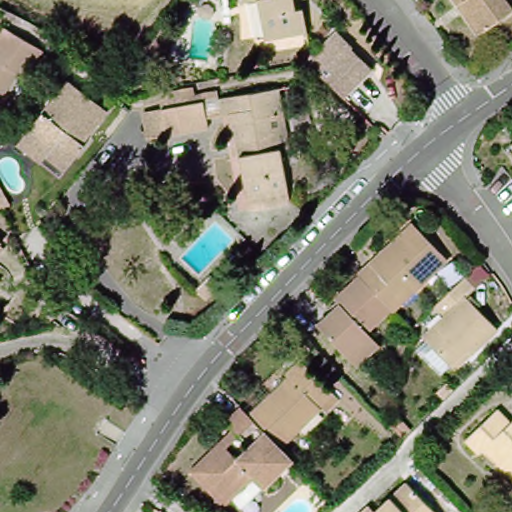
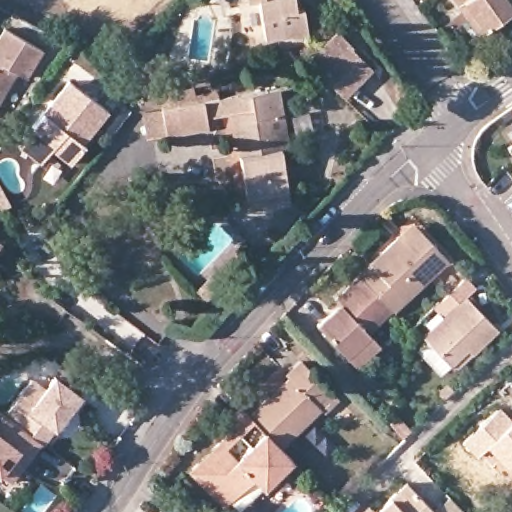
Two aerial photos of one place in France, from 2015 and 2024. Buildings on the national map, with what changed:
unchanged [(226,2),(226,0),(234,0),(226,2)]
unchanged [(247,0),(294,0),(297,17),(305,16),(309,40),(267,48),(260,6),(248,8),(247,0)]
unchanged [(458,0),(511,0),(512,1),(512,2),(483,23),(477,28),(458,0)]
unchanged [(22,79),(12,73),(0,93),(0,27),(38,49),(22,79)]
unchanged [(367,74),(347,95),(310,60),(340,29),(362,49),(360,52),(375,67),(367,74)]
unchanged [(148,67),(142,73),(135,67),(142,61),(148,67)]
unchanged [(45,155),(40,161),(18,144),(23,138),(70,80),(105,107),(108,111),(100,121),(82,144),(85,146),(70,163),(65,171),(45,155)]
unchanged [(233,134),(228,111),(207,115),(209,126),(167,134),(151,136),(147,111),(162,108),(160,91),(194,85),(197,102),(280,87),(283,111),(290,146),(281,147),(288,187),(291,201),(250,209),(248,195),(236,135),(233,134)]
unchanged [(509,151),(512,148),(512,154),(509,151)]
unchanged [(398,310),(397,309),(396,308),(365,275),(403,237),(418,222),(424,229),(452,258),(398,310)]
unchanged [(0,254),(0,246),(4,249),(0,254)]
unchanged [(197,288),(210,273),(222,283),(208,298),(197,288)]
unchanged [(324,324),(347,303),(342,297),(365,275),(396,308),(375,331),(377,334),(387,343),(363,366),(355,357),(324,324)]
unchanged [(456,370),(428,341),(438,330),(428,320),(471,279),(480,289),(472,298),(504,332),(479,356),(460,375),(456,370)]
unchanged [(341,394),(330,412),(323,407),(285,451),(247,413),(302,356),(341,394)]
new [(35,377),(48,387),(58,375),(82,393),(45,441),(42,439),(7,412),(35,377)]
new [(7,412),(42,439),(11,479),(0,470),(0,413),(3,409),(7,412)]
unchanged [(294,460),(266,488),(258,476),(247,486),(224,508),(188,469),(233,431),(223,421),(236,409),(294,460)]
unchanged [(485,450),(480,454),(466,440),(498,409),(512,422),(512,477),(485,450)]
unchanged [(440,511),(441,512),(378,512),(411,481),(440,511)]
unchanged [(378,512),(366,512),(372,506),(378,512)]

